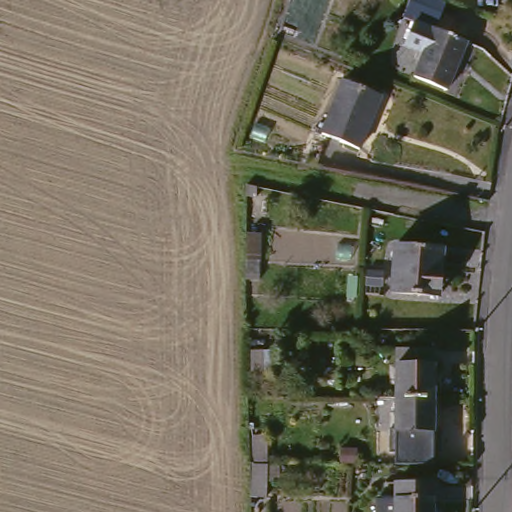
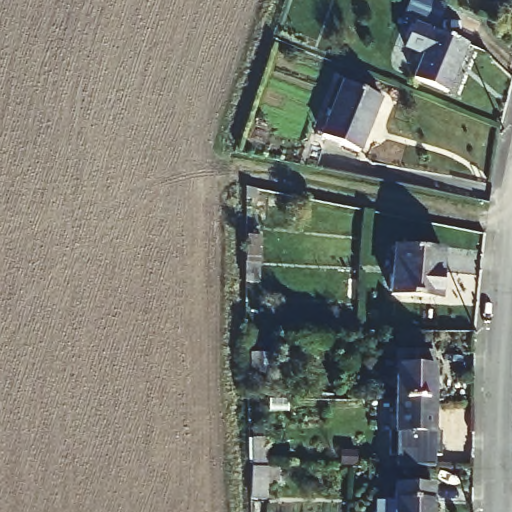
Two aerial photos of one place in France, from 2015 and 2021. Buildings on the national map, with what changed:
unchanged [(439,26),(421,19),(420,23),(402,16),(408,0),(440,0),(446,2),(440,25),(439,26)]
unchanged [(454,85),(421,73),(431,49),(412,42),(421,19),(439,26),(440,25),(473,37),(454,85)]
unchanged [(359,142),(324,129),(344,76),(379,89),(359,142)]
unchanged [(256,234),(243,233),(244,210),(257,211),(256,234)]
unchanged [(391,291),(392,246),(439,248),(437,293),(391,291)]
unchanged [(400,346),(437,347),(438,395),(400,395),(400,346)]
unchanged [(438,395),(438,443),(401,443),(400,395),(438,395)]
unchanged [(247,510),(247,478),(246,451),(261,451),(261,478),(262,510),(247,510)]
unchanged [(375,498),(395,499),(395,481),(432,482),(432,512),(374,512),(375,498)]

